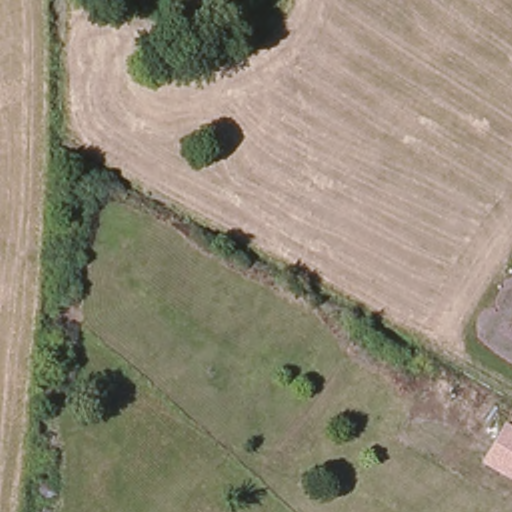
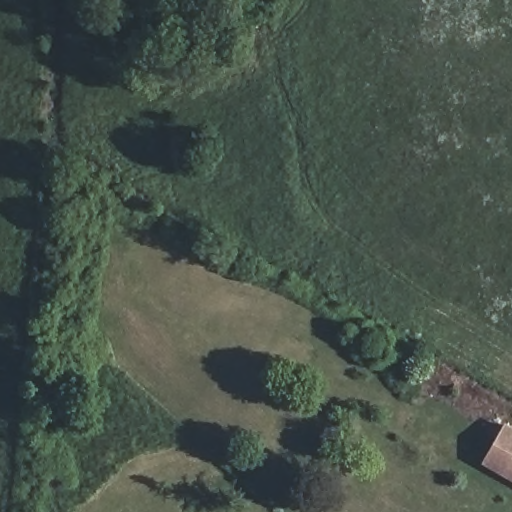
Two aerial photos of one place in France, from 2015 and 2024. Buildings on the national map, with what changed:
unchanged [(512,438),(512,487),(478,468),(501,432),(512,438)]

